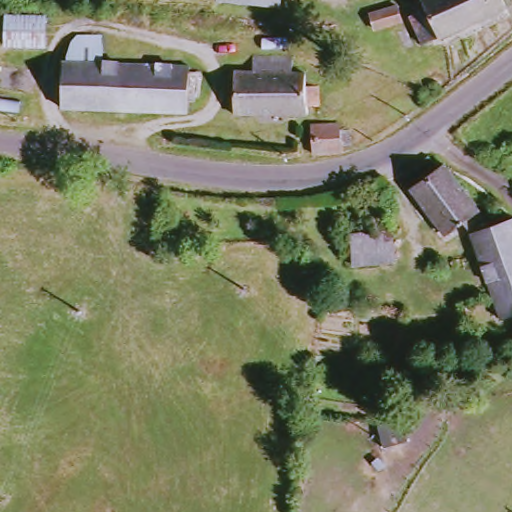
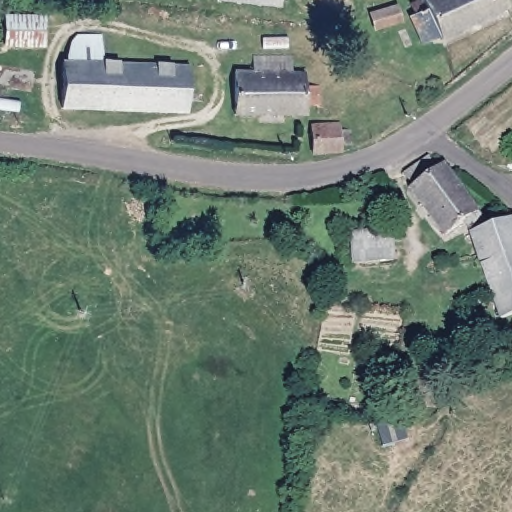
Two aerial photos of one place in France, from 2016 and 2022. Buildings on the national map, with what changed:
unchanged [(225,5),(226,0),(287,0),(286,9),(225,5)]
unchanged [(509,0),(511,7),(428,42),(413,2),(419,0),(509,0)]
unchanged [(403,5),(407,21),(380,28),(374,14),(403,5)]
unchanged [(12,48),(14,16),(53,18),(51,50),(42,50),(12,48)]
unchanged [(194,112),(65,108),(67,61),(68,36),(100,38),(100,61),(195,62),(194,112)]
unchanged [(300,71),(315,71),(315,85),(328,85),(327,104),(314,104),(315,114),(241,112),(240,69),(255,68),(255,55),(300,55),(300,71)]
unchanged [(310,119),(338,117),(337,124),(348,123),(351,145),(334,150),(309,151),(310,119)]
unchanged [(435,159),(446,173),(451,170),(487,214),(454,241),(416,194),(422,189),(412,176),(430,160),(435,159)]
unchanged [(476,235),(500,227),(497,215),(510,210),(512,213),(512,317),(505,319),(476,235)]
unchanged [(398,232),(400,261),(357,261),(356,235),(398,232)]

